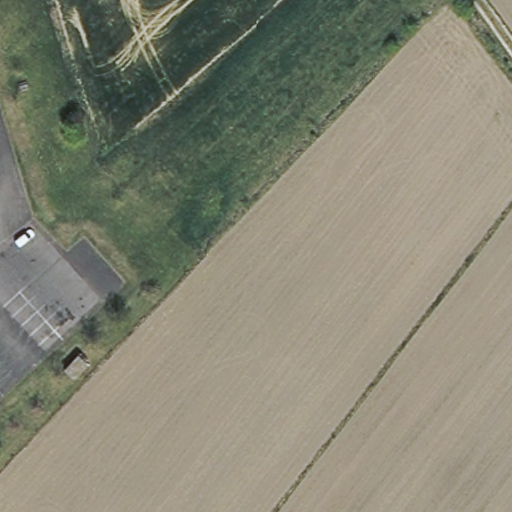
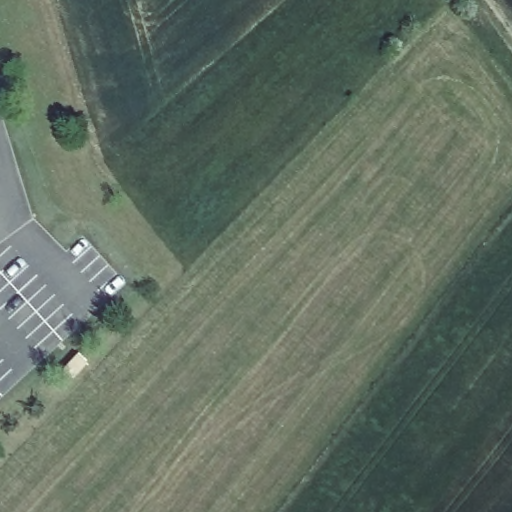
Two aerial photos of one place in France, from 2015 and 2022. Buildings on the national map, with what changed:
unchanged [(57,244),(1,293),(0,293),(0,258),(38,223),(57,244)]
unchanged [(57,244),(107,298),(51,349),(1,293),(57,244)]
unchanged [(85,369),(70,385),(59,374),(75,359),(85,369)]

